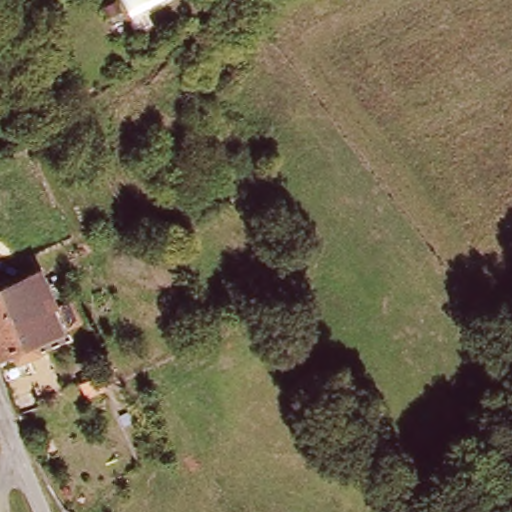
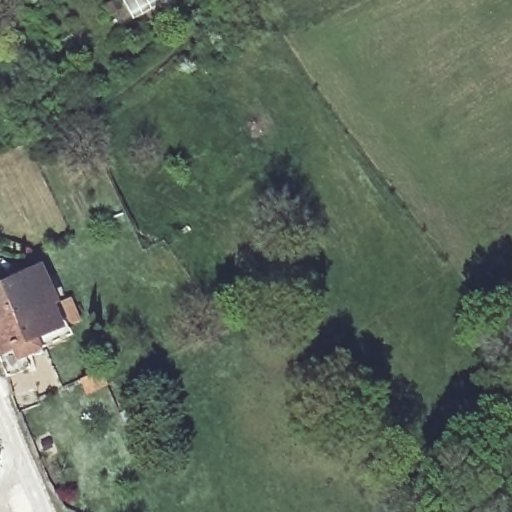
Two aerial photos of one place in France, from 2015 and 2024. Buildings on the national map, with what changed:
unchanged [(35,332),(41,350),(23,355),(25,365),(0,374),(0,310),(12,306),(1,274),(44,258),(58,301),(72,297),(79,319),(35,332)]
unchanged [(1,274),(12,306),(0,310),(0,271),(1,274)]
unchanged [(91,373),(73,382),(66,365),(85,357),(91,373)]

